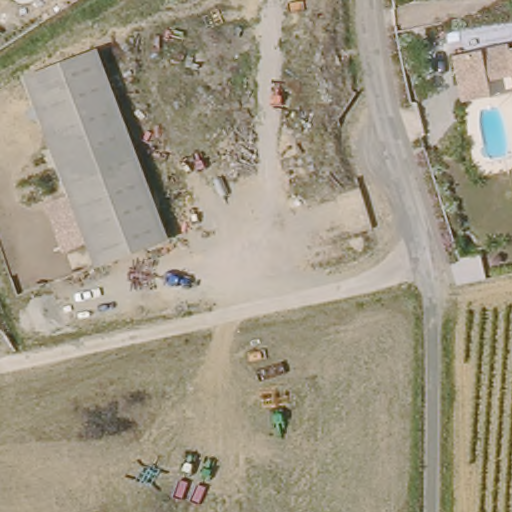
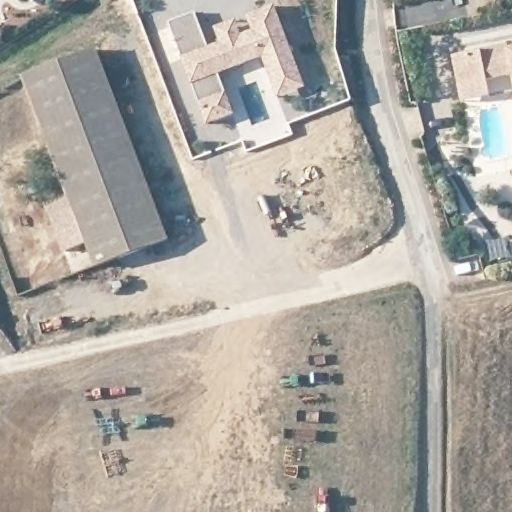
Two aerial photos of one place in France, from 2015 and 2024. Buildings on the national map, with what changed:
new [(201,115),(191,84),(170,22),(197,14),(209,49),(221,45),(218,35),(216,30),(237,22),(238,28),(242,38),(255,34),(250,18),(276,10),(300,80),(303,92),(277,101),(273,89),(263,59),(217,75),(228,106),(231,116),(205,125),(201,115)]
unchanged [(487,76),(465,81),(459,51),(507,41),(508,45),(510,52),(512,52),(512,71),(487,76)]
unchanged [(465,81),(487,76),(491,93),(444,102),(435,56),(459,51),(465,81)]
unchanged [(166,246),(91,272),(53,164),(23,81),(100,55),(132,149),(166,246)]

